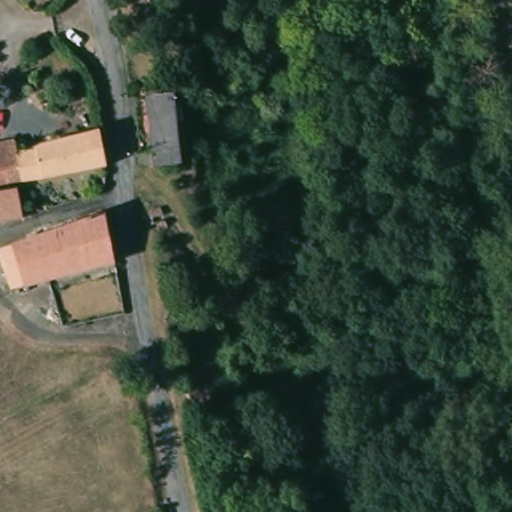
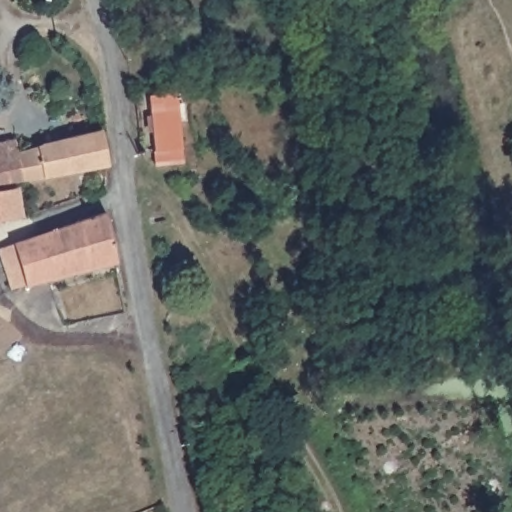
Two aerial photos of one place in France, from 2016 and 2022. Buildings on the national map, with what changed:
unchanged [(176,90),(187,158),(159,162),(148,94),(176,90)]
unchanged [(12,148),(10,138),(10,137),(9,132),(7,125),(36,117),(45,145),(99,137),(105,171),(101,171),(0,188),(0,151),(12,148)]
unchanged [(15,194),(16,200),(22,222),(0,227),(0,197),(15,194)]
unchanged [(6,255),(115,219),(124,268),(17,294),(6,255)]

